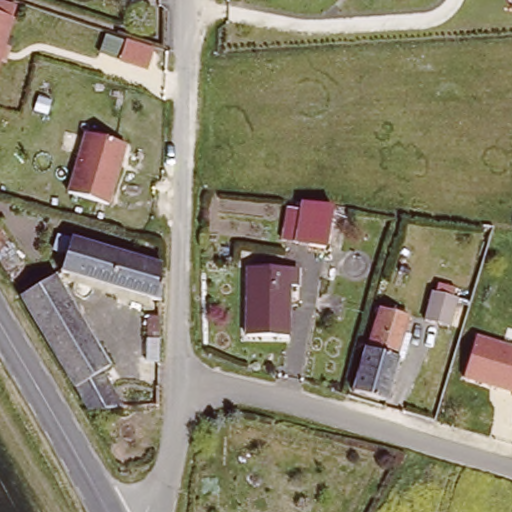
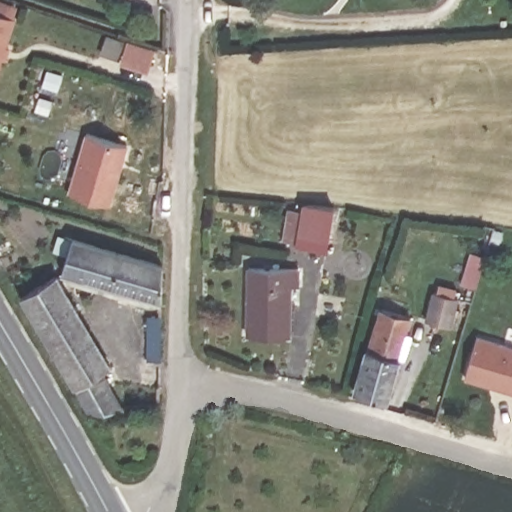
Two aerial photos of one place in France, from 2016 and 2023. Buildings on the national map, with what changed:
unchanged [(11,16),(0,50),(0,12),(11,16)]
unchanged [(120,144),(102,204),(66,189),(83,132),(120,144)]
unchanged [(300,202),(301,196),(331,202),(323,243),(279,237),(284,203),(300,202)]
unchanged [(158,304),(58,273),(63,256),(51,253),(56,237),(159,266),(158,304)]
unchanged [(9,259),(0,264),(0,242),(9,259)]
unchanged [(243,269),(254,269),(294,267),(295,290),(286,291),(288,338),(246,339),(246,333),(243,269)]
unchanged [(16,296),(48,279),(105,365),(96,372),(121,409),(88,412),(16,296)]
unchanged [(432,293),(456,301),(448,327),(424,320),(432,293)]
unchanged [(377,306),(410,316),(387,401),(353,390),(377,306)]
unchanged [(158,355),(148,354),(148,333),(158,333),(158,355)]
unchanged [(512,390),(463,376),(477,334),(512,345),(512,390)]

